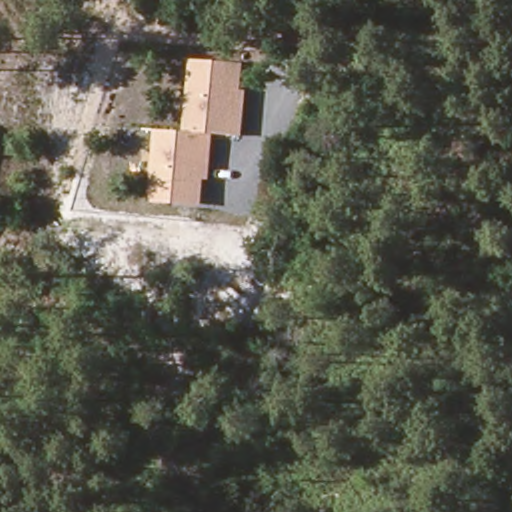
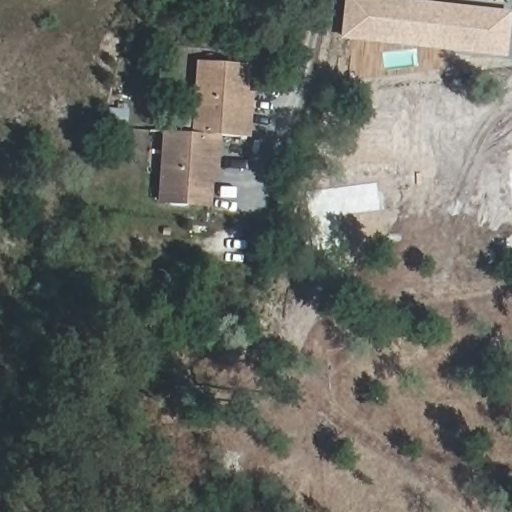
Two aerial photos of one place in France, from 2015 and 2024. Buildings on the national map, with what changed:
new [(339,39),(344,0),(413,0),(507,11),(503,57),(339,39)]
unchanged [(249,137),(220,136),(215,182),(211,182),(209,207),(158,204),(161,132),(189,133),(195,61),(249,64),(247,91),(252,92),(249,137)]

